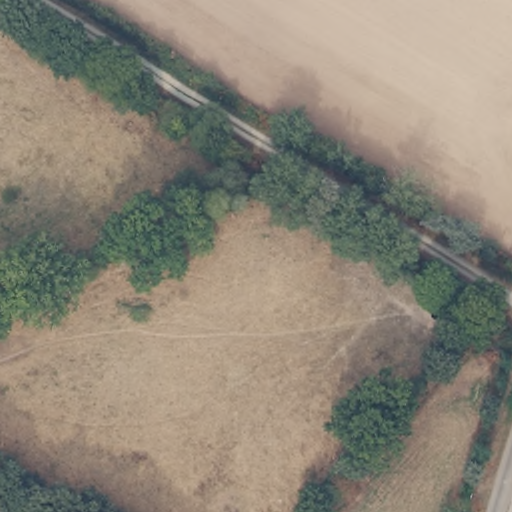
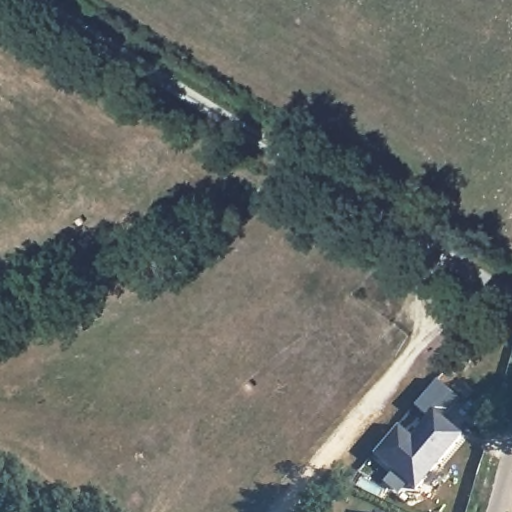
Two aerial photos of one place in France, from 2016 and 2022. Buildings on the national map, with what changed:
new [(416,489),(373,455),(398,425),(411,435),(433,408),(462,435),(416,489)]

